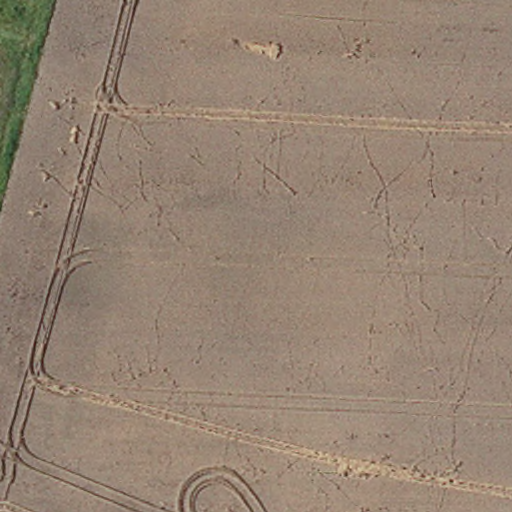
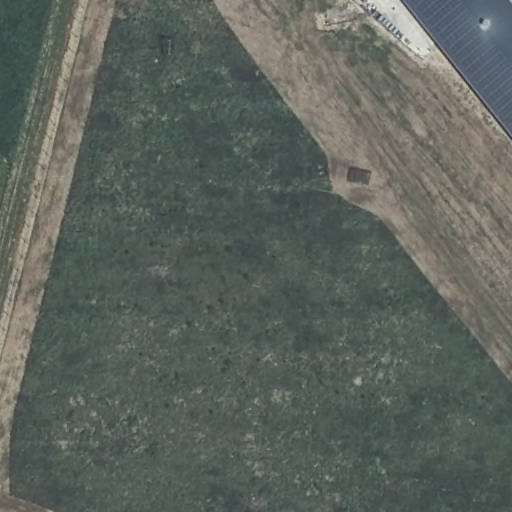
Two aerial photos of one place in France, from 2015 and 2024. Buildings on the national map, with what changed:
new [(404,0),(503,0),(512,11),(512,134),(404,0)]

